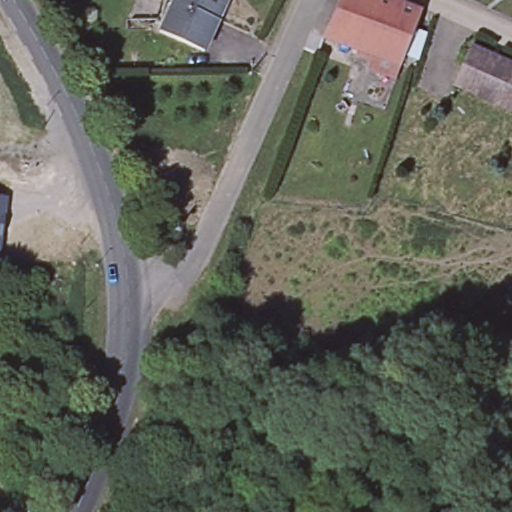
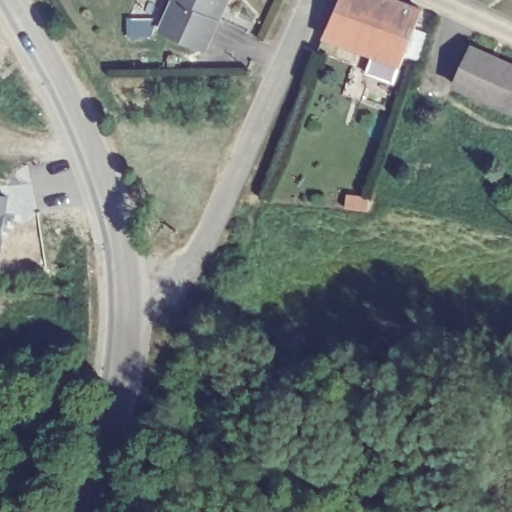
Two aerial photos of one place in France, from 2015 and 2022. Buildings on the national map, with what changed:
unchanged [(231,1),(225,3),(221,12),(225,14),(210,46),(166,25),(177,0),(231,0),(231,1)]
unchanged [(322,37),(325,29),(337,0),(375,0),(357,40),(334,32),(331,40),(322,37)]
unchanged [(422,2),(402,57),(357,40),(375,0),(417,0),(422,2)]
unchanged [(497,60),(497,58),(512,64),(512,111),(459,88),(474,50),(497,60)]
unchanged [(0,252),(0,196),(9,197),(0,252)]

